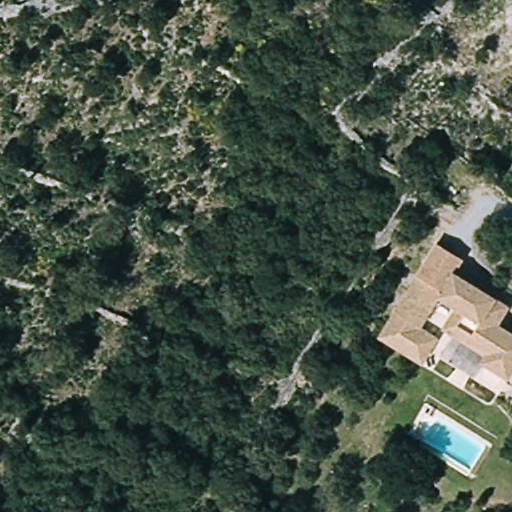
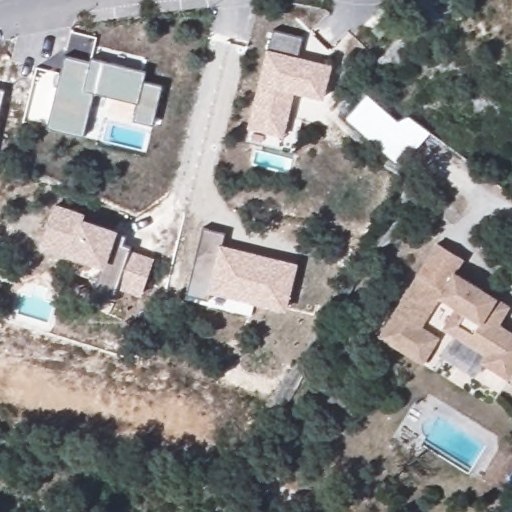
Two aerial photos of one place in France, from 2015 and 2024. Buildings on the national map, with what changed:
unchanged [(401,11),(412,0),(423,0),(436,12),(420,27),(401,11)]
new [(301,37),(297,56),(332,65),(323,99),(295,92),(283,137),(248,127),(257,82),(266,47),(268,47),(273,31),(301,37)]
new [(90,62),(91,57),(145,72),(143,81),(162,85),(153,124),(132,120),(137,102),(93,92),(83,135),(47,126),(65,56),(90,62)]
new [(5,90),(0,108),(0,89),(5,90)]
new [(400,167),(347,120),(367,97),(400,125),(407,116),(428,135),(400,167)]
new [(85,212),(83,217),(118,230),(117,231),(125,235),(121,244),(130,247),(154,257),(141,296),(117,287),(115,295),(95,288),(102,267),(66,255),(41,246),(55,204),(85,212)]
new [(225,234),(221,244),(298,263),(286,311),(216,293),(208,299),(187,293),(203,227),(225,234)]
unchanged [(453,335),(445,331),(457,310),(440,300),(422,332),(440,342),(425,368),(382,343),(435,247),(460,261),(451,275),(475,288),(508,307),(505,313),(498,324),(512,332),(512,378),(511,378),(485,362),(488,355),(483,352),(474,372),(443,355),(453,335)]

